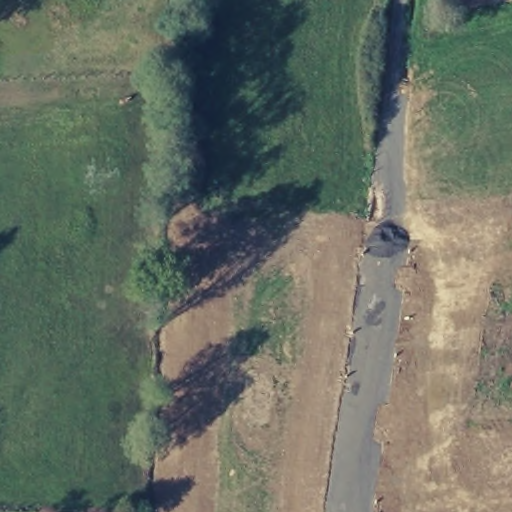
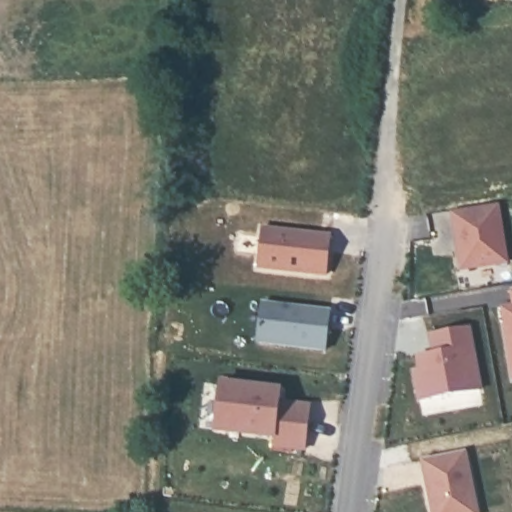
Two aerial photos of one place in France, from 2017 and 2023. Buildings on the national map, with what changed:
new [(500,202),(510,265),(466,272),(455,209),(500,202)]
new [(266,224),(334,230),(331,270),(263,265),(266,224)]
new [(512,292),(512,307),(510,292),(512,292)]
new [(267,299),(335,307),(330,346),(262,338),(267,299)]
new [(500,310),(512,307),(512,382),(500,310)]
new [(425,376),(422,362),(439,358),(435,340),(472,332),(485,392),(424,404),(419,377),(425,376)]
new [(285,399),(315,402),(311,446),(279,442),(280,432),(220,426),(205,425),(210,380),(225,381),(285,387),(285,399)]
new [(468,448),(479,512),(434,512),(427,473),(429,472),(427,457),(468,448)]

